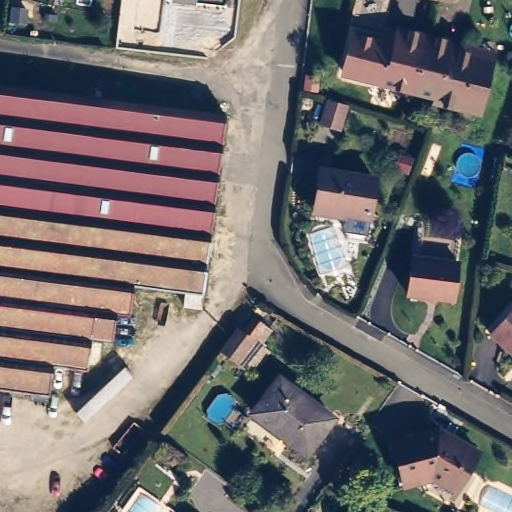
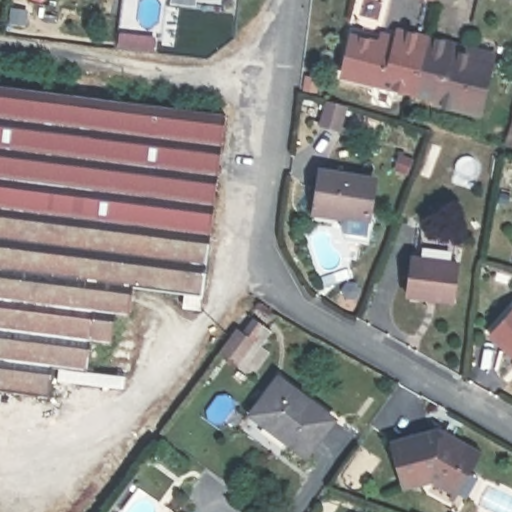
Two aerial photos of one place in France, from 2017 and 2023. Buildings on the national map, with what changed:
unchanged [(350,37),(376,44),(378,35),(393,39),(395,31),(417,37),(407,93),(340,77),(350,37)]
unchanged [(490,55),(488,62),(473,115),(433,106),(433,100),(407,93),(417,37),(447,45),(490,55)]
unchanged [(215,112),(227,112),(202,309),(185,307),(186,292),(135,286),(131,314),(125,313),(123,325),(115,324),(113,342),(91,340),(88,370),(53,365),(50,395),(0,388),(0,83),(123,99),(215,112)]
unchanged [(321,101),(342,107),(336,127),(316,122),(321,101)]
unchanged [(512,127),(512,143),(507,142),(512,127)]
unchanged [(316,212),(317,206),(323,170),(377,179),(371,214),(344,210),(343,216),(316,212)]
unchanged [(416,256),(462,261),(458,300),(412,293),(416,256)]
unchanged [(486,340),(512,311),(512,362),(486,340)]
unchanged [(270,330),(260,344),(268,351),(252,374),(221,349),(240,325),(245,328),(253,317),(270,330)]
unchanged [(285,377),(337,418),(310,452),(257,410),(285,377)]
unchanged [(438,476),(412,483),(400,440),(445,428),(485,448),(474,468),(463,490),(456,486),(438,476)]

